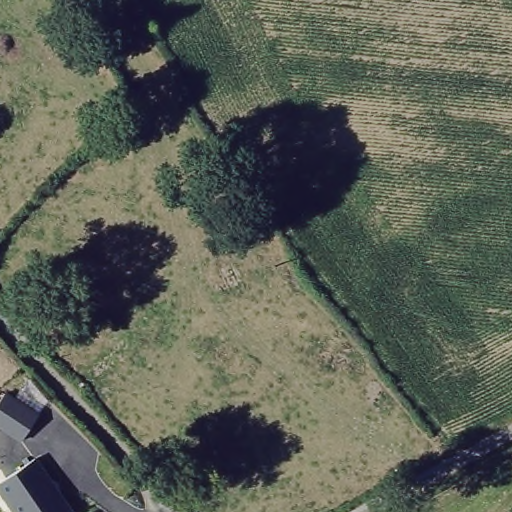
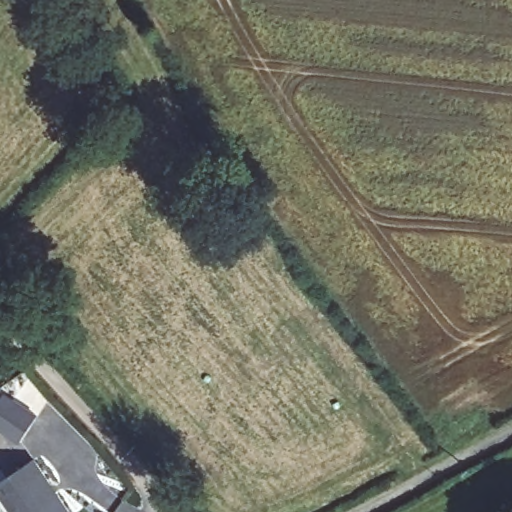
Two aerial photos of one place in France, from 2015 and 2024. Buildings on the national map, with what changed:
unchanged [(20,442),(0,430),(0,401),(6,391),(39,413),(20,442)]
unchanged [(38,458),(74,511),(73,512),(13,512),(0,493),(0,483),(38,458)]

